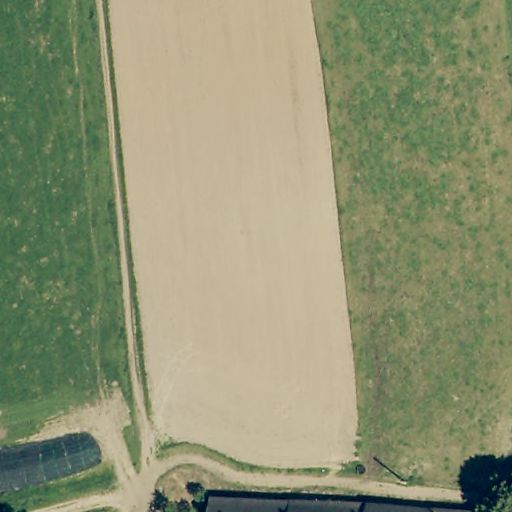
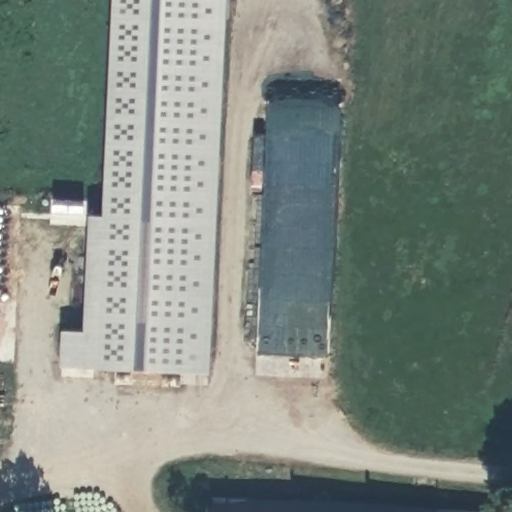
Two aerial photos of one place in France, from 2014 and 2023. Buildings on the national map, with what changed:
new [(207,374),(59,368),(62,331),(84,332),(89,216),(102,217),(112,0),(226,0),(207,374)]
unchanged [(218,512),(219,495),(498,512),(218,512)]

